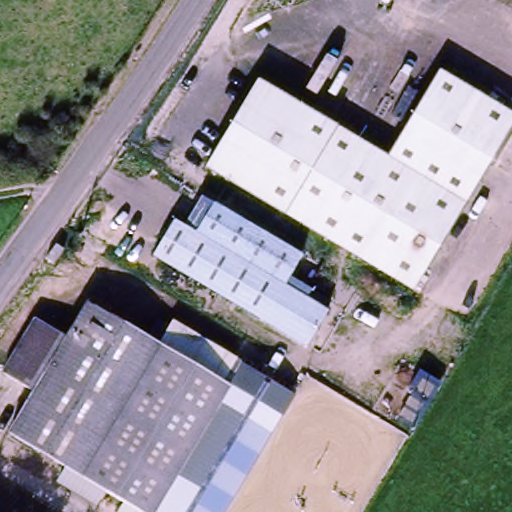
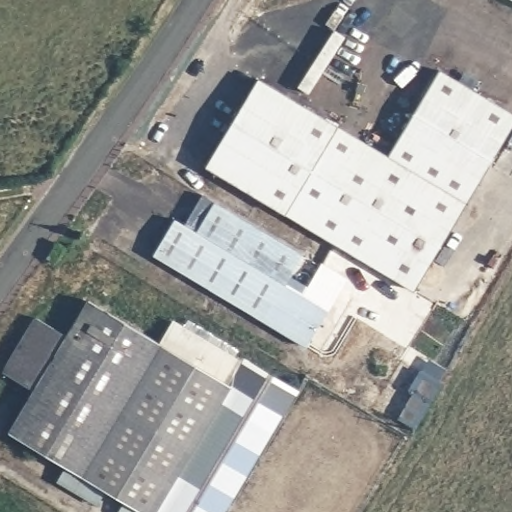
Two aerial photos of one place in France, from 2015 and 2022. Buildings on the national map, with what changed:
unchanged [(389,155),(441,68),(512,111),(512,126),(414,290),(396,279),(304,223),(206,165),(259,77),(389,155)]
unchanged [(307,298),(329,311),(308,346),(154,255),(174,220),(186,226),(203,197),(304,257),(291,278),(311,291),(307,298)]
unchanged [(54,263),(46,257),(57,243),(64,249),(54,263)]
unchanged [(164,496),(155,512),(142,512),(11,434),(36,392),(68,339),(90,302),(177,354),(221,380),(229,385),(164,496)]
unchanged [(3,372),(35,319),(68,339),(36,392),(3,372)]
unchanged [(177,354),(189,332),(234,358),(221,380),(177,354)]
unchanged [(234,512),(165,512),(251,368),(273,381),(301,399),(234,512)]

